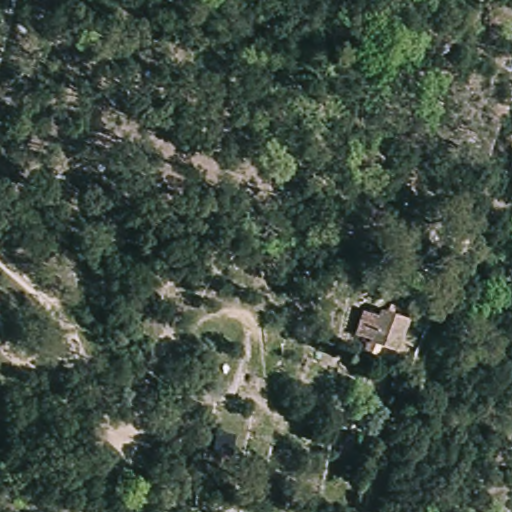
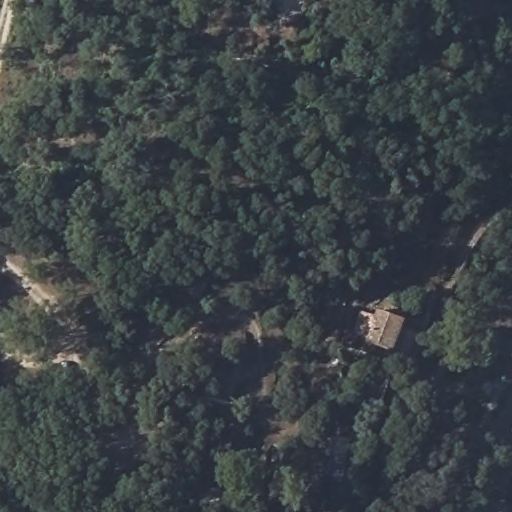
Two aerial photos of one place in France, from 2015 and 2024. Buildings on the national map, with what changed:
unchanged [(365,313),(380,317),(381,312),(412,320),(407,341),(395,338),(390,352),(372,347),(373,344),(358,340),(365,313)]

